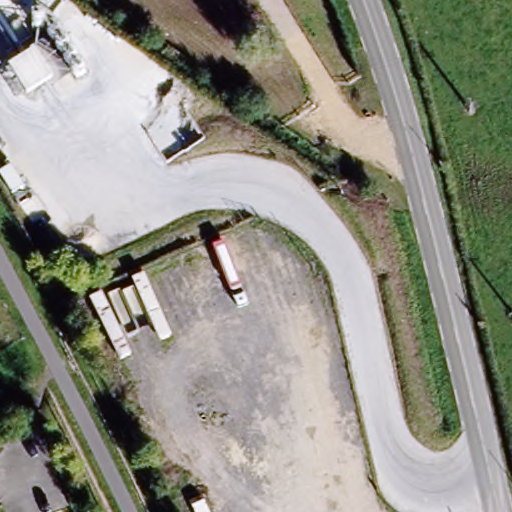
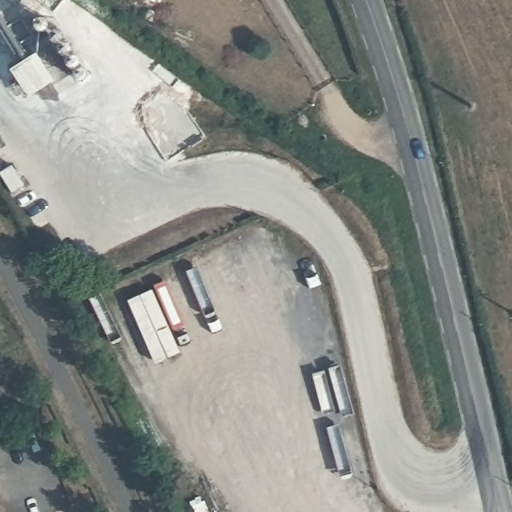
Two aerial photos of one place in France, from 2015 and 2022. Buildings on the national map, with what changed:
unchanged [(41,50),(60,82),(29,99),(8,69),(41,50)]
unchanged [(3,149),(0,150),(0,145),(3,149)]

